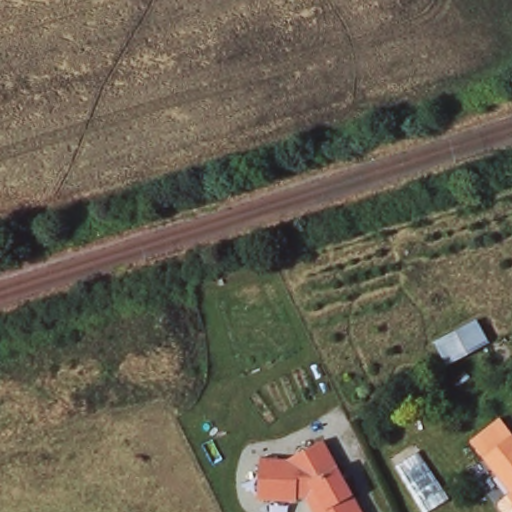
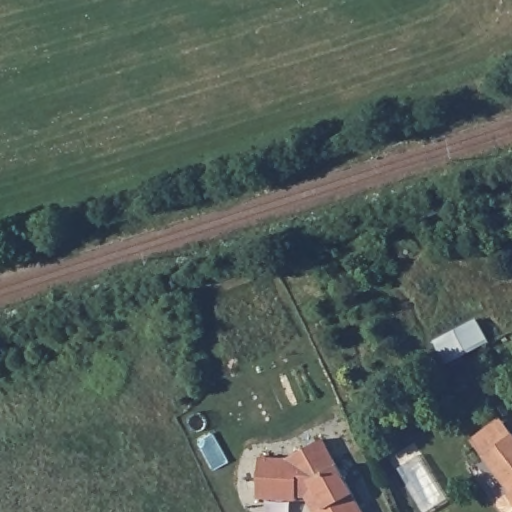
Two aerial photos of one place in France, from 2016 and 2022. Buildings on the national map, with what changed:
unchanged [(357,512),(307,512),(301,501),(253,498),(256,457),(285,458),(319,438),(357,512)]
unchanged [(488,457),(512,438),(512,489),(488,457)]
unchanged [(503,507),(504,501),(511,495),(512,494),(512,512),(507,512),(503,507)]

